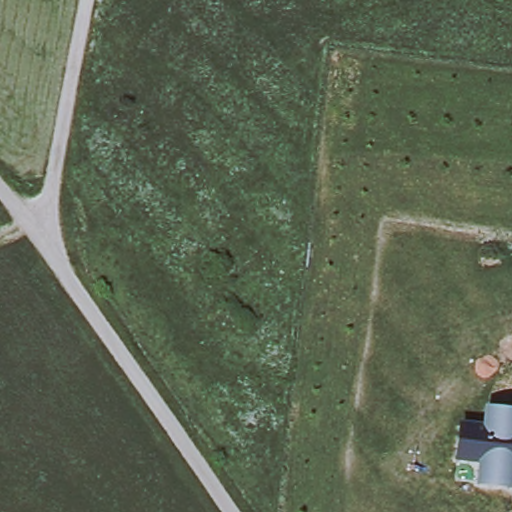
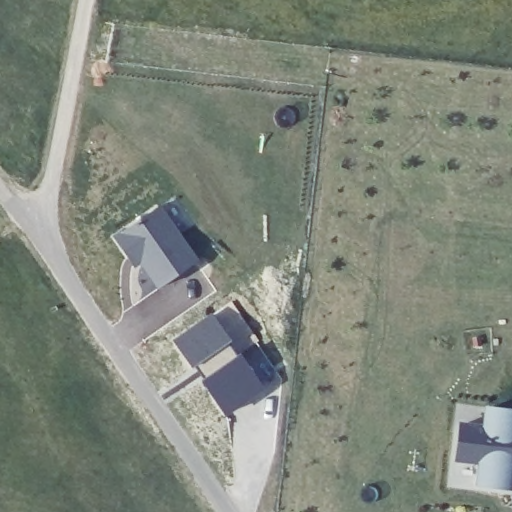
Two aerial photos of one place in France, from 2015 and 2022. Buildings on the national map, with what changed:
new [(195,224),(182,234),(199,259),(159,289),(140,263),(134,267),(114,237),(160,205),(175,197),(195,224)]
new [(260,340),(240,354),(264,389),(227,414),(175,340),(232,302),(260,340)]
unchanged [(484,406),(512,410),(512,492),(476,488),(477,464),(455,462),(460,425),(482,427),(484,406)]

